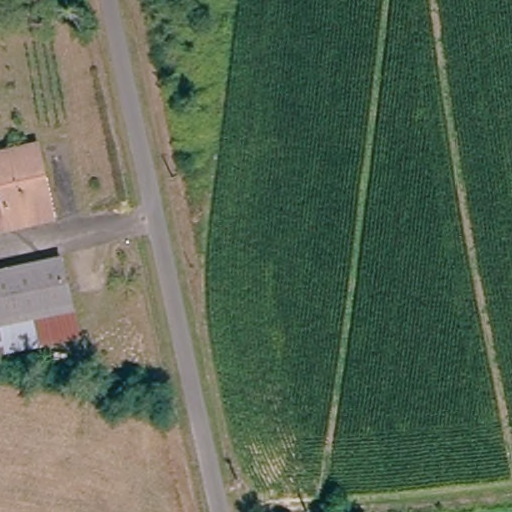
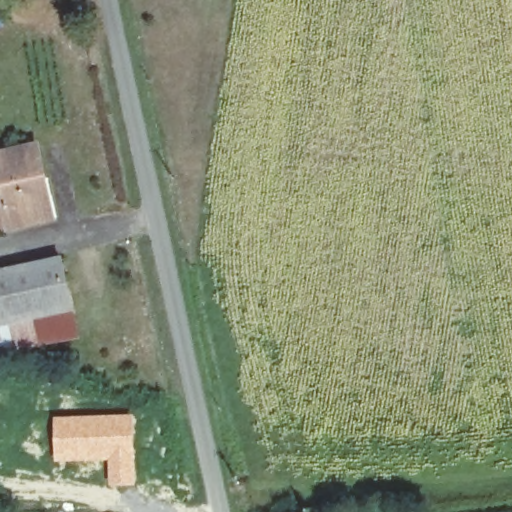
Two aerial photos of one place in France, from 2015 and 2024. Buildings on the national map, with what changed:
unchanged [(43,177),(51,216),(43,217),(5,226),(0,226),(0,153),(36,146),(43,177)]
unchanged [(0,329),(0,271),(60,258),(72,312),(0,329)]
unchanged [(2,351),(0,341),(0,329),(72,312),(77,334),(2,351)]
new [(133,416),(135,487),(107,487),(107,462),(54,462),(52,417),(133,416)]

